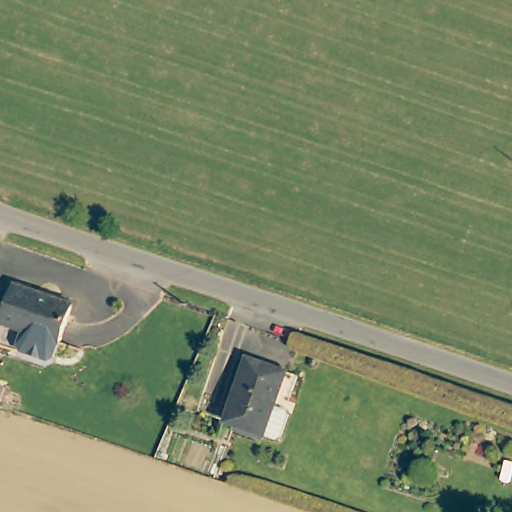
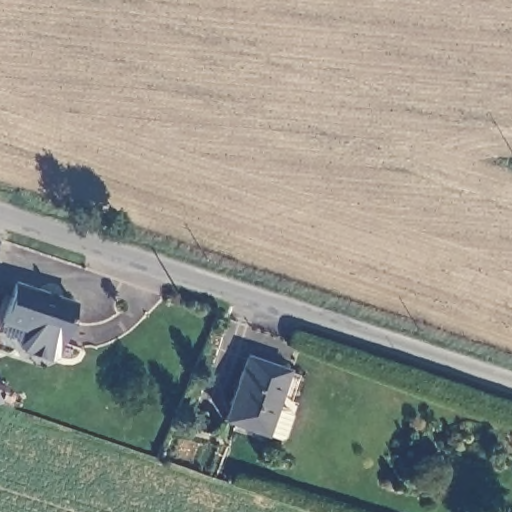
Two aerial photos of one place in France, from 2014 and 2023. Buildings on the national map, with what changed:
unchanged [(69,303),(58,339),(0,319),(0,318),(12,282),(69,303)]
unchanged [(291,371),(274,433),(233,420),(251,358),(291,371)]

